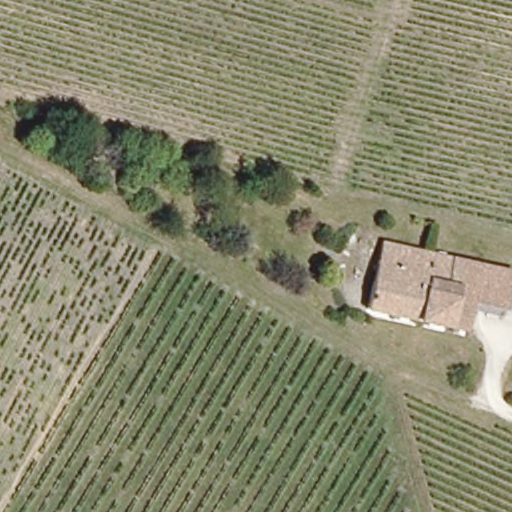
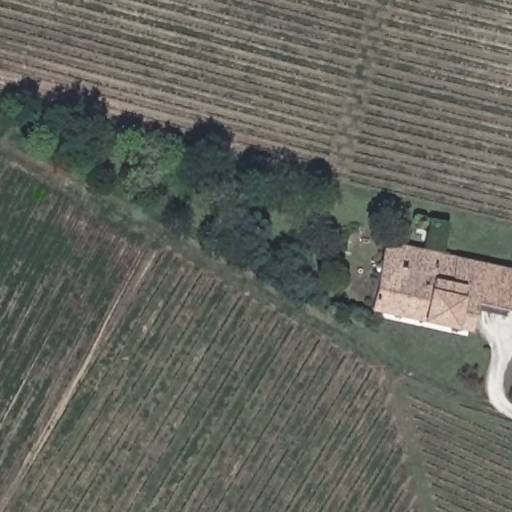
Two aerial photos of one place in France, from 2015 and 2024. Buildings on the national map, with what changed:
unchanged [(512,272),(512,279),(509,292),(505,311),(472,303),(465,332),(373,308),(384,259),(388,242),(440,255),(482,265),(512,272)]

